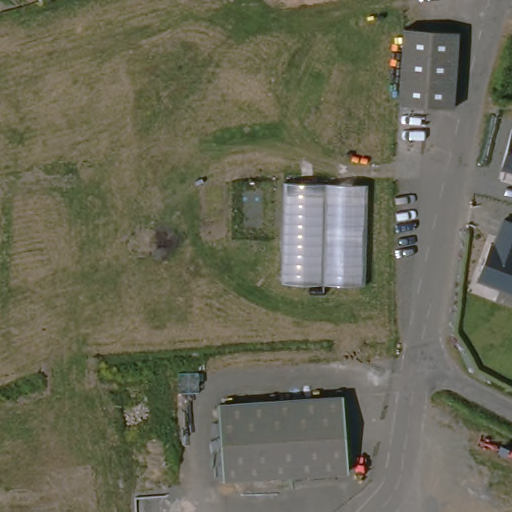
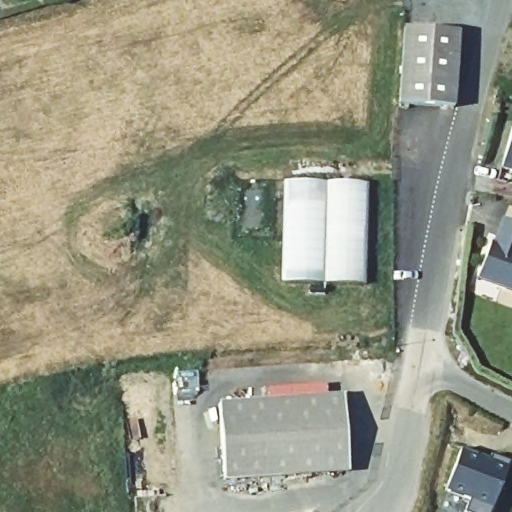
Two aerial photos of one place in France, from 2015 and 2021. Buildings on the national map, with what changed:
unchanged [(403,31),(464,28),(463,107),(402,109),(403,87),(403,31)]
unchanged [(511,125),(512,126),(512,167),(501,164),(511,125)]
unchanged [(369,282),(281,279),(284,177),(369,179),(369,282)]
unchanged [(512,298),(500,293),(504,283),(484,276),(494,250),(502,253),(504,246),(499,244),(505,227),(512,229),(512,298)]
unchanged [(349,474),(221,481),(217,407),(344,398),(349,474)]
new [(463,449),(491,460),(493,455),(510,463),(509,467),(492,509),(491,512),(466,512),(471,501),(447,490),(463,449)]

